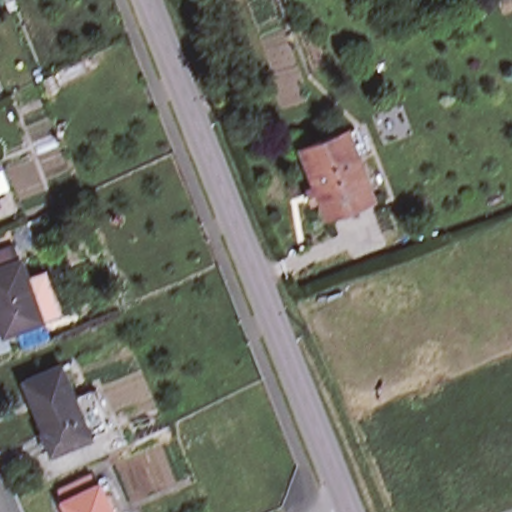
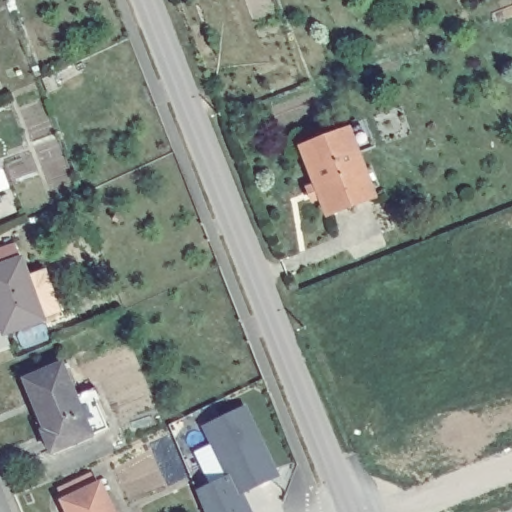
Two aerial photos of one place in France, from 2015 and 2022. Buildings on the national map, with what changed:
unchanged [(350,127),(375,196),(327,213),(302,144),(350,127)]
unchanged [(0,208),(0,204),(2,207),(0,208)]
unchanged [(15,246),(21,261),(27,279),(47,272),(62,312),(43,320),(7,333),(12,346),(0,351),(0,336),(6,333),(0,318),(0,251),(15,246)]
unchanged [(94,385),(105,412),(100,414),(104,424),(87,430),(49,446),(42,428),(45,426),(24,377),(60,363),(72,393),(88,387),(94,385)]
new [(202,428),(243,409),(272,471),(268,482),(251,490),(249,485),(240,490),(242,494),(239,495),(247,512),(201,512),(193,492),(225,477),(202,428)]
unchanged [(69,512),(65,502),(67,501),(63,490),(93,477),(98,488),(101,486),(113,512),(69,512)]

